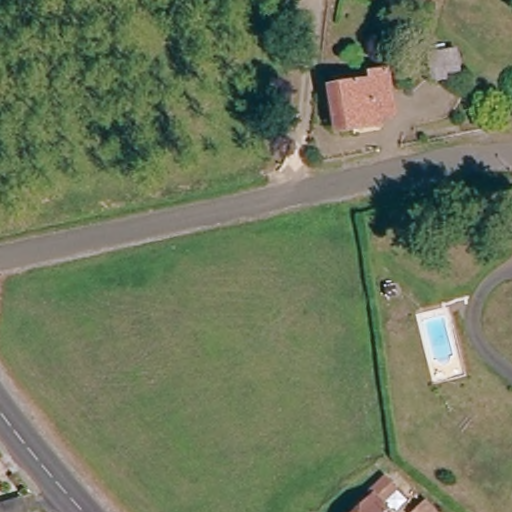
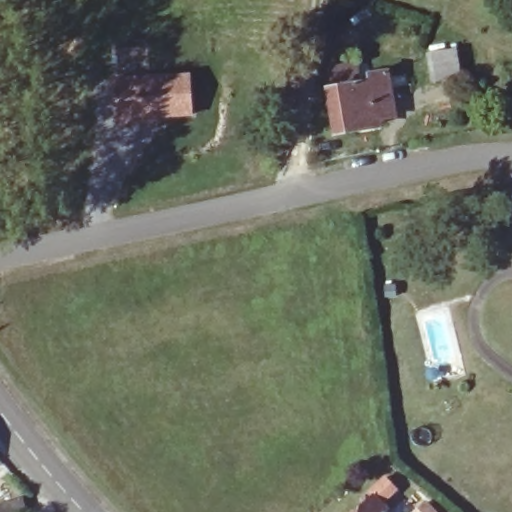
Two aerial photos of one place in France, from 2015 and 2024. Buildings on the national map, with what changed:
unchanged [(462,81),(429,88),(424,64),(456,57),(462,81)]
new [(190,71),(193,116),(112,126),(106,77),(190,71)]
unchanged [(351,137),(333,141),(324,99),(350,94),(349,87),(379,80),(381,88),(388,120),(377,122),(379,131),(351,137)]
unchanged [(363,495),(379,479),(389,489),(374,505),(379,511),(379,512),(354,512),(367,499),(363,495)]
unchanged [(37,492),(43,507),(29,512),(10,512),(7,502),(37,492)]
unchanged [(431,512),(410,512),(419,502),(431,512)]

